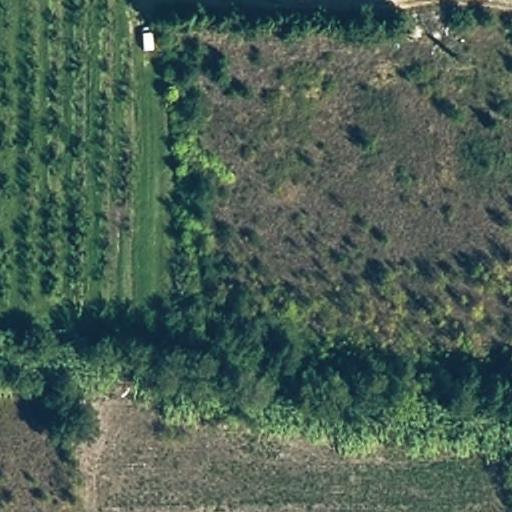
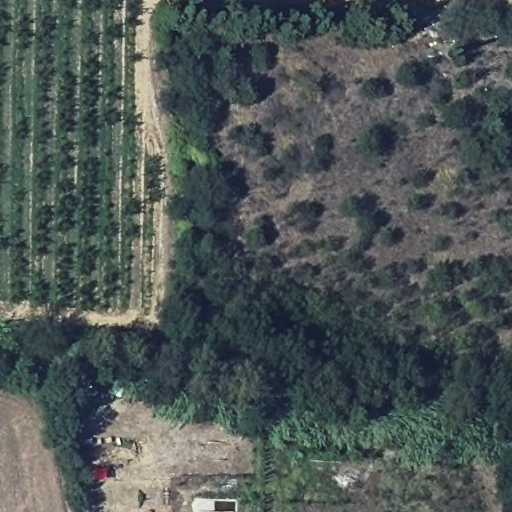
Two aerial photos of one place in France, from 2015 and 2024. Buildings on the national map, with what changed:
[]

